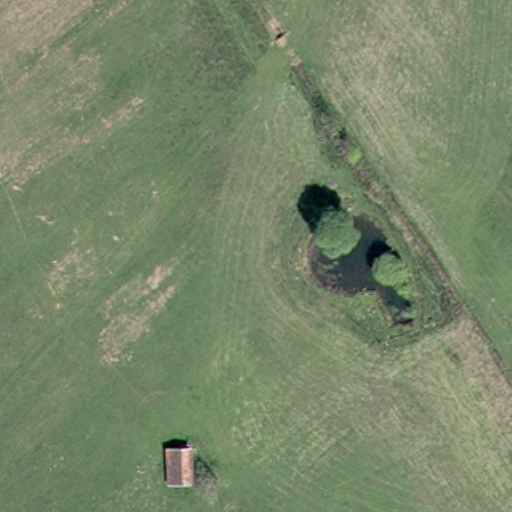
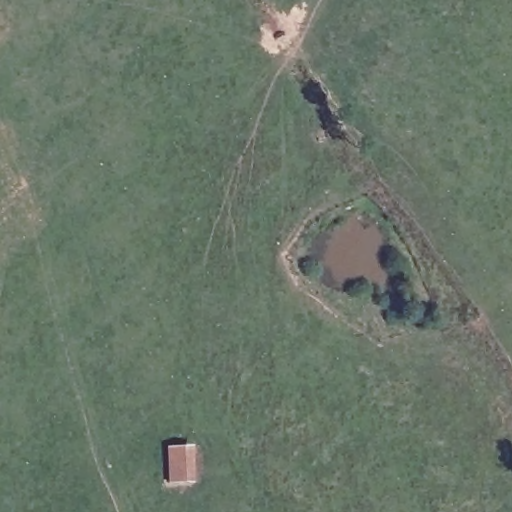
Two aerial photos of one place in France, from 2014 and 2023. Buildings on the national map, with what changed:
unchanged [(186,433),(187,468),(166,469),(164,434),(186,433)]

